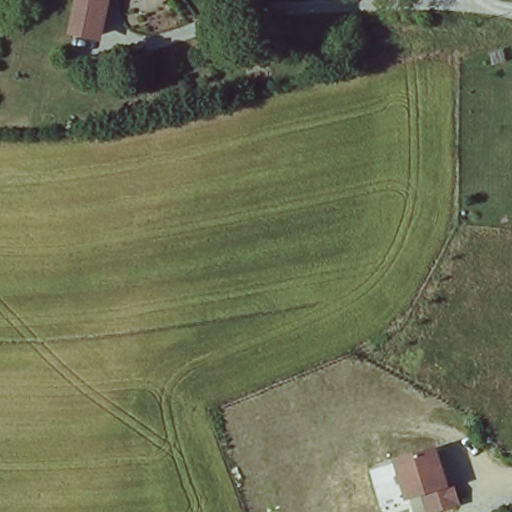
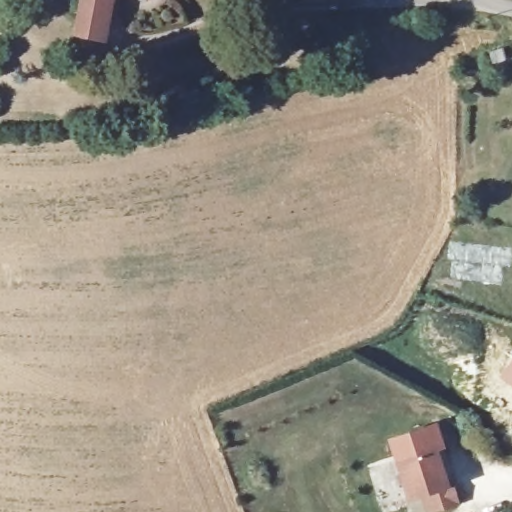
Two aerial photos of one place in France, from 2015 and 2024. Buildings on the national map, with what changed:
unchanged [(75,33),(81,0),(104,0),(98,37),(75,33)]
new [(512,357),(512,388),(497,378),(512,357)]
unchanged [(440,481),(450,477),(456,502),(429,512),(425,512),(422,495),(407,501),(391,459),(431,447),(440,481)]

